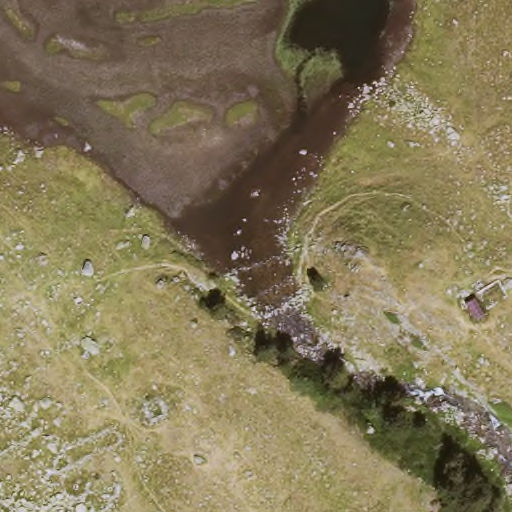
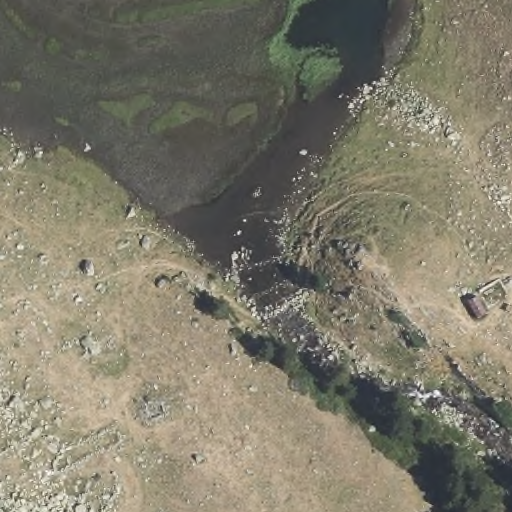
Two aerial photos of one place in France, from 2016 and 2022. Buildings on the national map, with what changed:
unchanged [(486,298),(496,321),(482,329),(476,315),(471,306),(486,298)]

